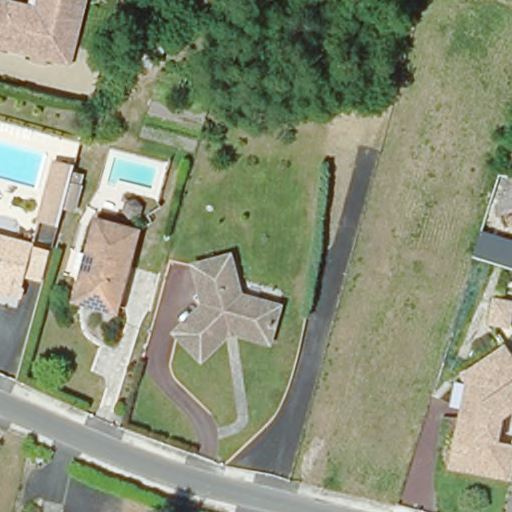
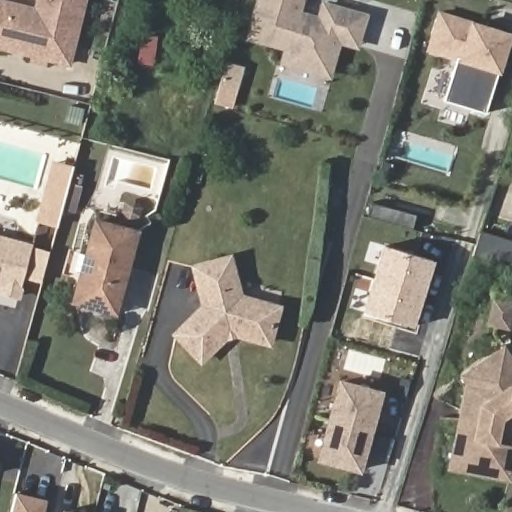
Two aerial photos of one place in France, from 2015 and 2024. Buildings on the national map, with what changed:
unchanged [(0,53),(0,10),(30,16),(33,0),(84,0),(68,67),(40,62),(27,59),(0,53)]
new [(290,43),(252,32),(261,0),(303,0),(298,17),(320,23),(324,8),(365,20),(359,42),(341,38),(333,69),(330,79),(284,66),(287,56),(290,43)]
new [(512,32),(512,45),(491,112),(450,98),(462,59),(434,50),(446,12),(512,32)]
unchanged [(62,219),(40,214),(48,177),(53,158),(78,164),(76,168),(85,171),(75,206),(66,203),(65,207),(62,219)]
unchanged [(72,298),(88,250),(98,218),(140,230),(119,301),(116,311),(72,298)]
new [(512,241),(512,269),(472,256),(480,231),(512,241)]
unchanged [(30,244),(15,293),(0,289),(0,235),(30,244)]
new [(415,327),(362,311),(382,245),(435,261),(415,327)]
unchanged [(206,304),(195,264),(229,255),(241,299),(276,309),(266,343),(234,333),(224,335),(198,358),(175,331),(206,304)]
unchanged [(483,324),(490,295),(512,301),(512,313),(508,330),(483,324)]
unchanged [(452,466),(476,387),(470,371),(512,356),(512,472),(509,482),(452,466)]
new [(315,459),(338,377),(385,390),(362,473),(315,459)]
new [(48,499),(45,512),(11,512),(15,491),(48,499)]
new [(74,512),(62,512),(62,509),(74,512)]

